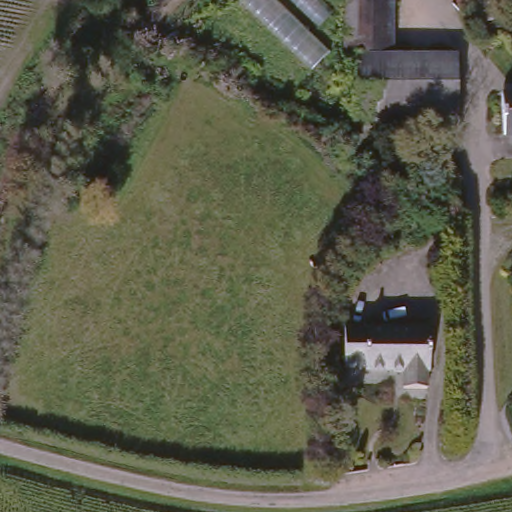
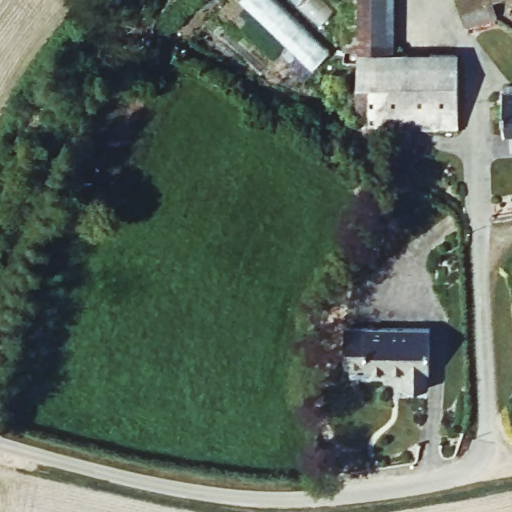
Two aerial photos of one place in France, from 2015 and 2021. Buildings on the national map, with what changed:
unchanged [(408,124),(407,141),(359,143),(356,57),(343,57),(344,0),(394,0),(396,49),(457,49),(459,124),(408,124)]
unchanged [(499,17),(468,27),(459,0),(496,0),(495,1),(499,17)]
unchanged [(512,134),(505,134),(503,95),(512,95),(512,134)]
unchanged [(434,362),(425,362),(425,379),(404,380),(403,365),(367,367),(367,361),(345,362),(345,323),(431,322),(434,362)]

